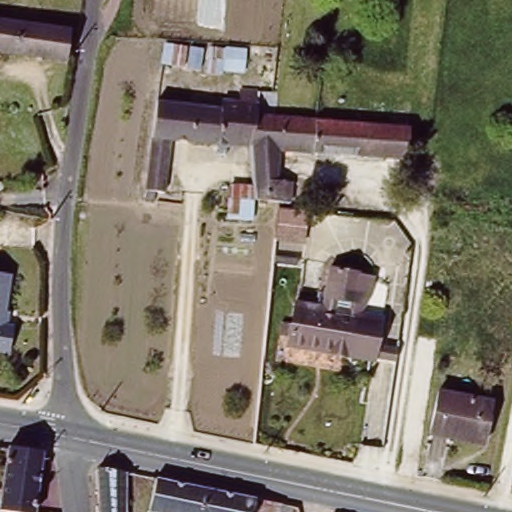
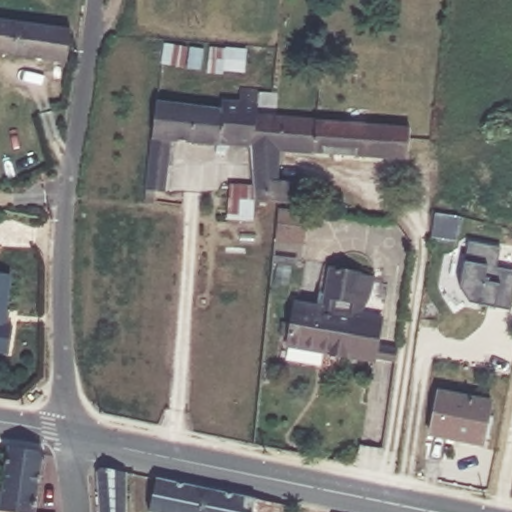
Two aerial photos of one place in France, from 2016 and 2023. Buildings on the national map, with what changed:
unchanged [(71,33),(66,66),(0,57),(0,23),(71,33)]
unchanged [(202,50),(202,76),(161,72),(163,46),(202,50)]
unchanged [(251,50),(247,77),(225,74),(221,80),(209,79),(212,50),(251,50)]
unchanged [(255,95),(259,64),(273,64),(271,99),(255,95)]
unchanged [(160,201),(151,200),(160,102),(224,107),(225,101),(258,104),(258,116),(255,147),(175,140),(169,193),(161,192),(160,201)]
unchanged [(304,232),(276,230),(279,202),(250,199),(252,187),(255,147),(258,116),(412,130),(409,161),(279,149),(276,180),(293,182),(291,202),(306,204),(304,232)]
new [(495,307),(469,303),(459,287),(465,261),(468,242),(500,249),(496,267),(512,270),(512,302),(511,310),(495,307)]
unchanged [(7,267),(0,322),(0,266),(7,267)]
unchanged [(290,350),(297,307),(324,312),(330,275),(363,280),(362,281),(375,283),(375,285),(375,286),(375,287),(375,288),(374,288),(374,289),(374,290),(374,291),(374,292),(373,293),(373,294),(373,295),(373,296),(372,296),(372,297),(371,297),(371,298),(371,299),(370,300),(370,301),(369,301),(369,302),(368,302),(368,303),(367,303),(367,304),(367,305),(366,305),(358,304),(356,316),(382,320),(383,320),(377,362),(374,362),(290,350)]
unchanged [(9,331),(6,357),(0,356),(0,330),(9,331)]
unchanged [(46,396),(35,395),(36,384),(46,385),(46,396)]
unchanged [(491,402),(482,446),(435,436),(429,435),(438,391),(491,402)]
unchanged [(8,451),(43,456),(36,512),(1,512),(8,451)]
unchanged [(101,473),(126,477),(126,512),(98,512),(95,481),(101,473)]
unchanged [(281,512),(150,512),(156,483),(256,503),(282,509),(281,512)]

